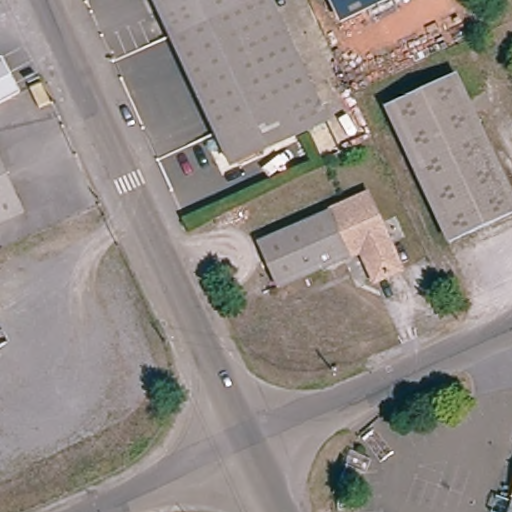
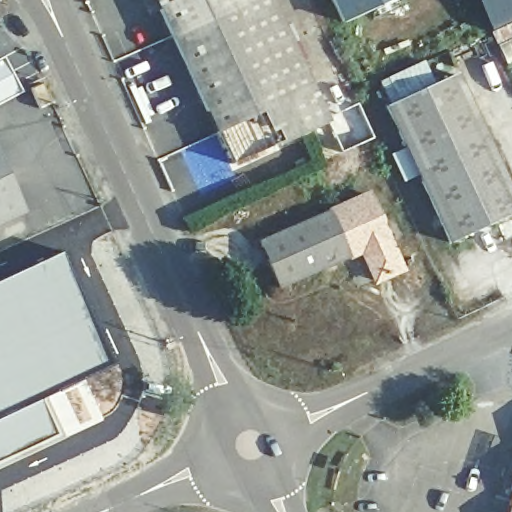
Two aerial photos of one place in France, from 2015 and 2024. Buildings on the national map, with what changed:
unchanged [(306,95),(212,140),(150,0),(264,0),(306,95)]
unchanged [(341,21),(332,0),(386,0),(341,21)]
new [(488,32),(474,0),(512,0),(512,21),(488,32)]
unchanged [(21,92),(0,103),(0,57),(2,56),(21,92)]
unchanged [(512,197),(512,218),(446,249),(383,111),(456,77),(512,197)]
unchanged [(52,103),(40,108),(31,87),(42,82),(52,103)]
unchanged [(306,95),(322,131),(228,174),(212,140),(306,95)]
unchanged [(0,230),(0,173),(21,220),(0,230)]
unchanged [(367,199),(400,273),(374,284),(361,255),(277,292),(257,246),(367,199)]
new [(97,334),(95,335),(107,363),(46,394),(38,396),(58,439),(0,467),(0,279),(58,253),(97,334)]
unchanged [(507,512),(512,499),(512,512),(507,512)]

